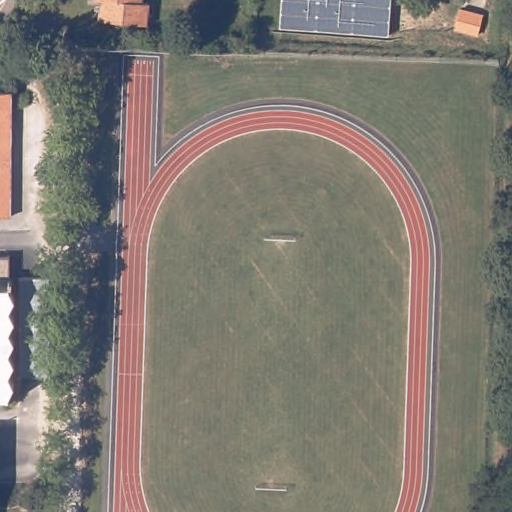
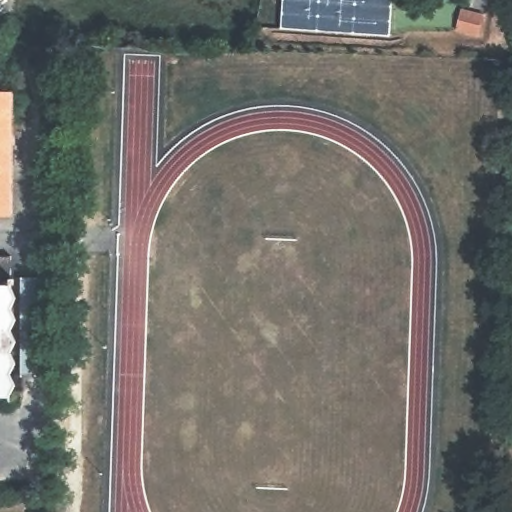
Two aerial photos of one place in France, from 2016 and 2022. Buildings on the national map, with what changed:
demolished [(154,0),(153,23),(104,18),(106,0),(148,0),(154,0)]
unchanged [(390,35),(281,28),(282,0),(392,0),(390,35)]
unchanged [(0,91),(15,91),(14,217),(0,217),(0,91)]
unchanged [(0,248),(15,248),(14,398),(0,398),(0,248)]
unchanged [(38,377),(20,377),(21,276),(38,277),(38,377)]

